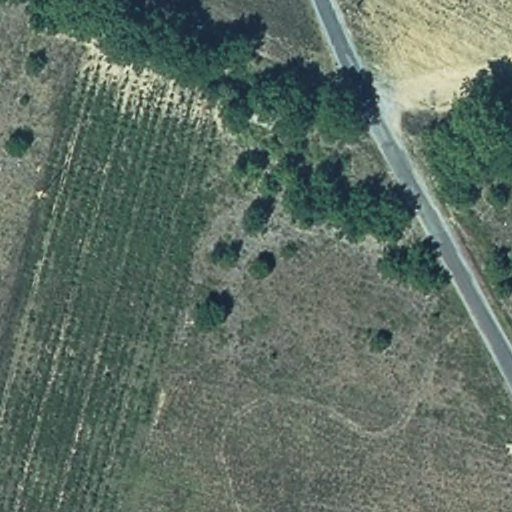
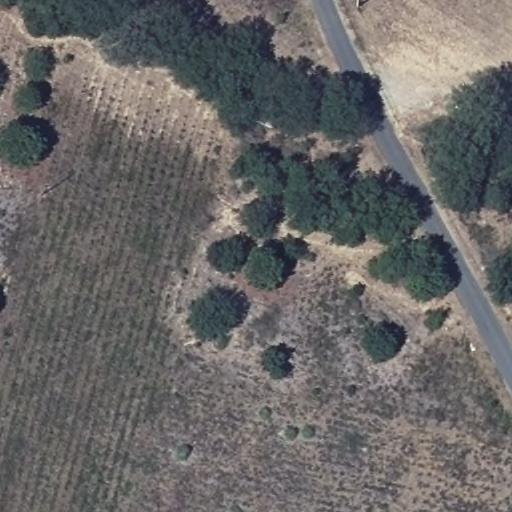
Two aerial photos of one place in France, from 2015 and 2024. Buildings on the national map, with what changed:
unchanged [(279,119),(270,137),(239,125),(247,106),(279,119)]

